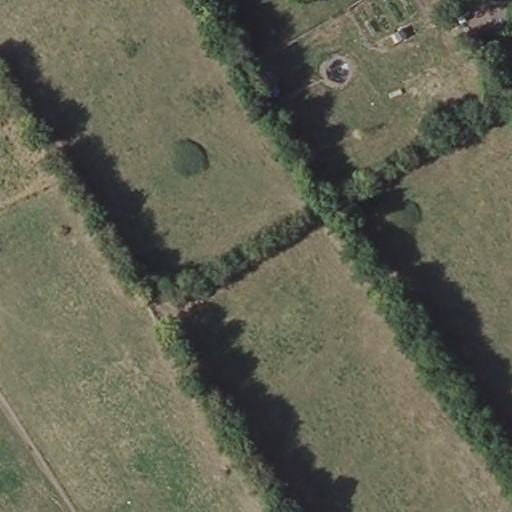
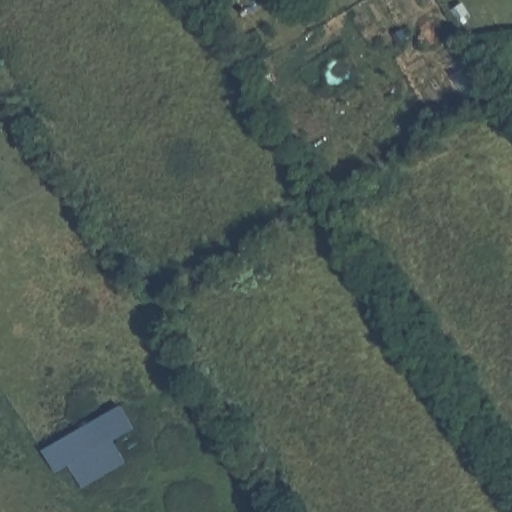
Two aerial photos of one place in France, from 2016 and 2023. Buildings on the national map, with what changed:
new [(134,431),(113,443),(126,465),(83,490),(69,467),(55,473),(42,452),(120,408),(134,431)]

